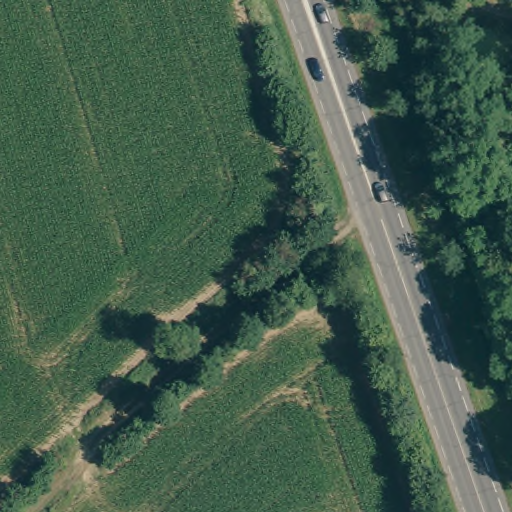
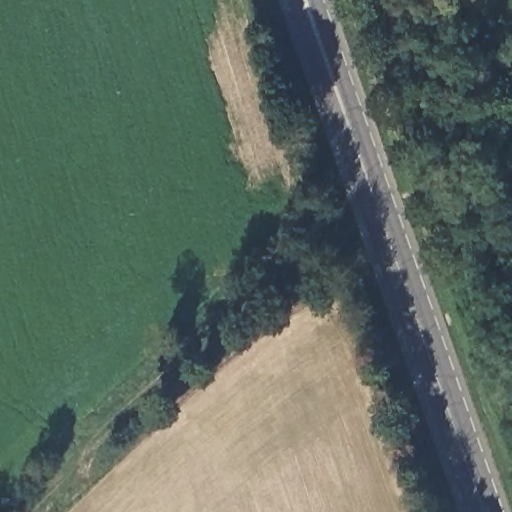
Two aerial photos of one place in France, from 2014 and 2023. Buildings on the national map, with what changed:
[]

